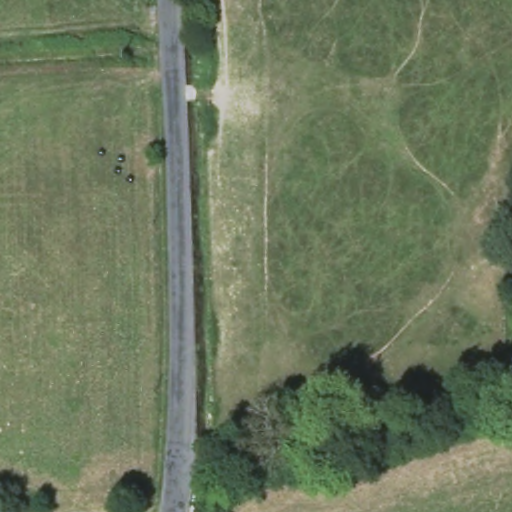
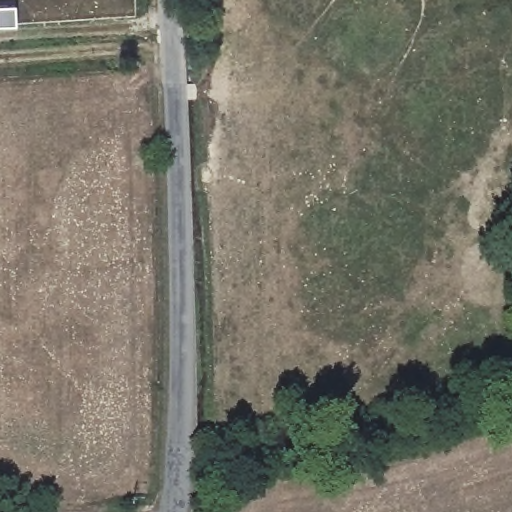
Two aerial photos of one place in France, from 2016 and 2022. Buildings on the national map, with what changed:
new [(18,23),(0,24),(0,4),(17,3),(18,23)]

